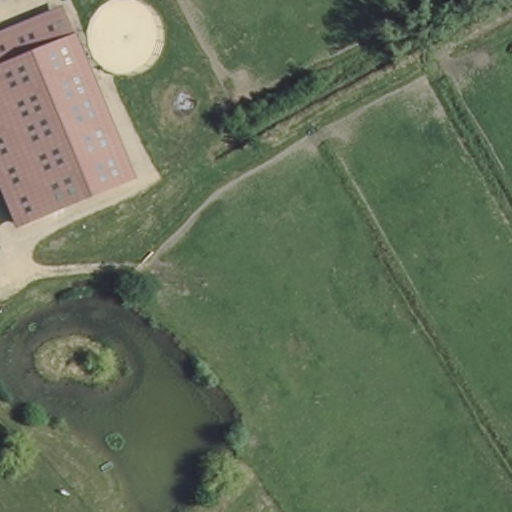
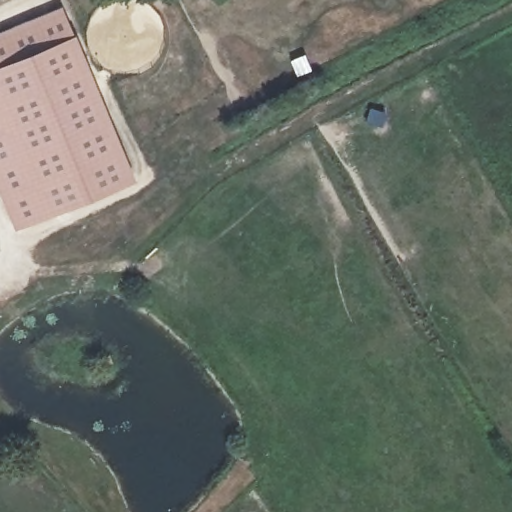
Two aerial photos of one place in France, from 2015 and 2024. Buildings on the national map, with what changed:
unchanged [(62,14),(134,182),(13,229),(0,197),(0,33),(62,14)]

